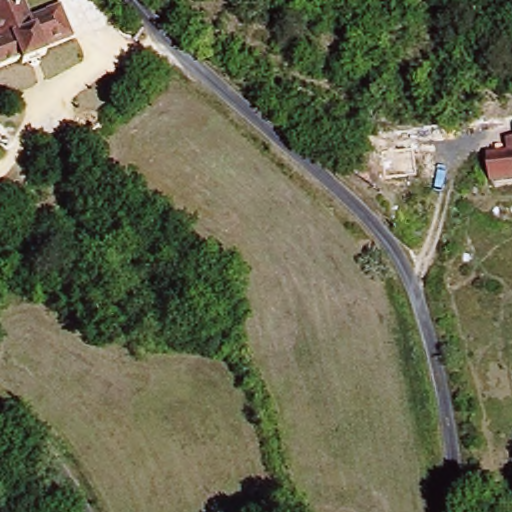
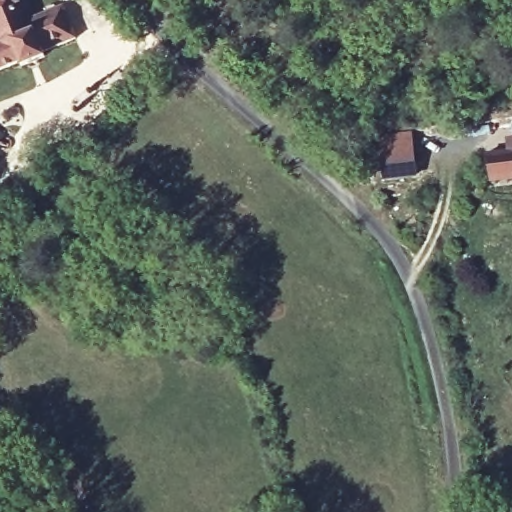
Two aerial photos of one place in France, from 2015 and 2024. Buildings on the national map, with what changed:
unchanged [(58,8),(75,41),(41,55),(43,60),(18,69),(16,65),(0,72),(0,0),(17,0),(26,22),(58,8)]
unchanged [(484,148),(511,146),(510,131),(512,131),(512,173),(486,175),(484,148)]
new [(417,176),(384,180),(379,135),(414,132),(417,176)]
unchanged [(0,147),(0,145),(1,146),(0,147)]

